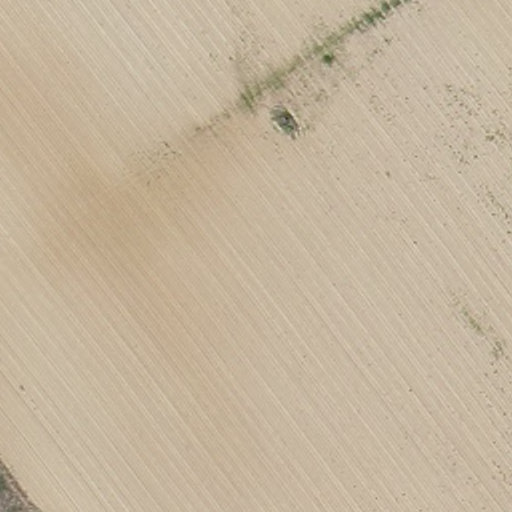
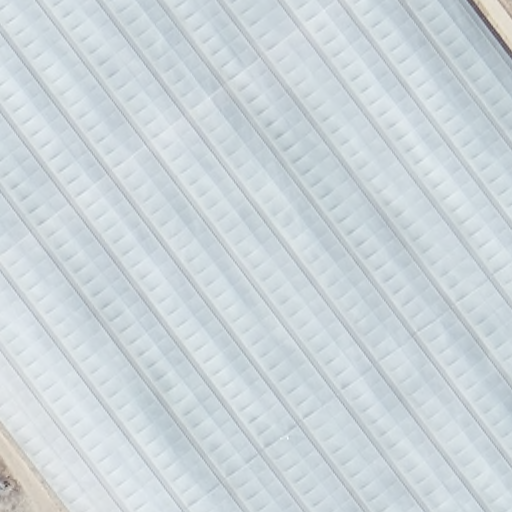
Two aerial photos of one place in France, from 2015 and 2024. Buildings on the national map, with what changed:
new [(512,512),(66,512),(0,426),(0,0),(461,0),(512,66),(512,512)]
new [(512,2),(511,0),(512,0),(512,2)]

